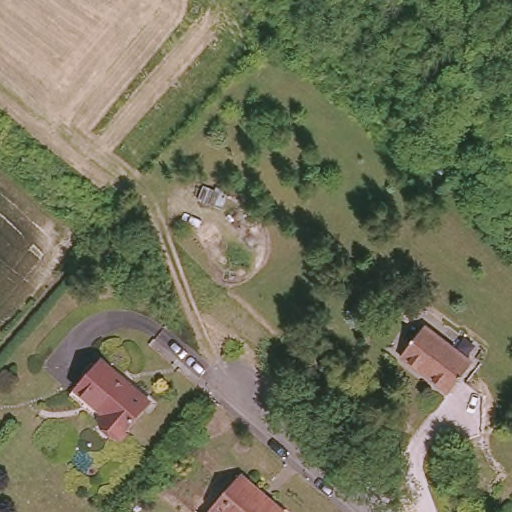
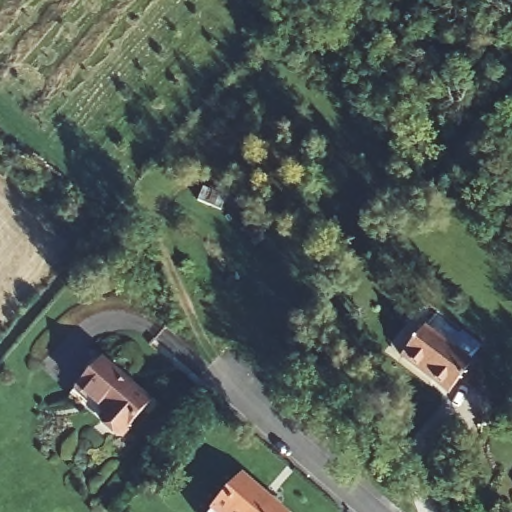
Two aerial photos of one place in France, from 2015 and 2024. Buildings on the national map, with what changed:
unchanged [(472,362),(446,392),(399,352),(423,322),(472,362)]
unchanged [(152,397),(119,437),(99,418),(105,411),(72,383),(99,352),(152,397)]
unchanged [(288,508),(285,512),(204,512),(241,468),(288,508)]

